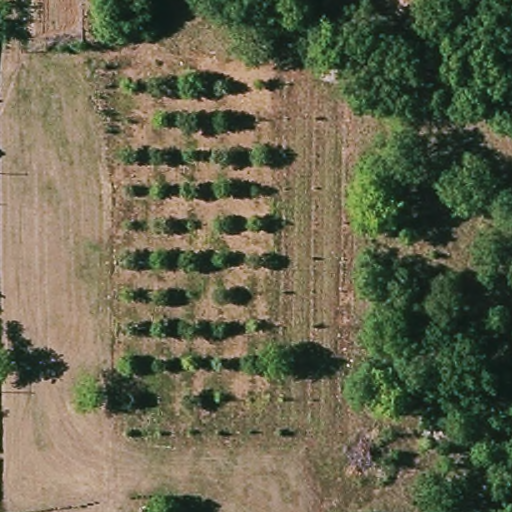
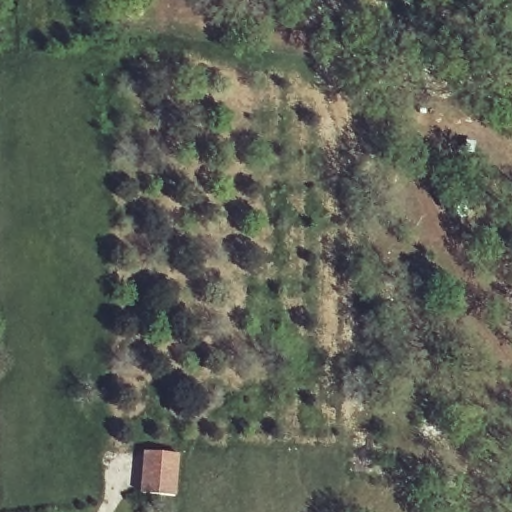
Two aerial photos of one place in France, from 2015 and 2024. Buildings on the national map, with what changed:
new [(143,450),(181,453),(177,496),(138,493),(143,450)]

